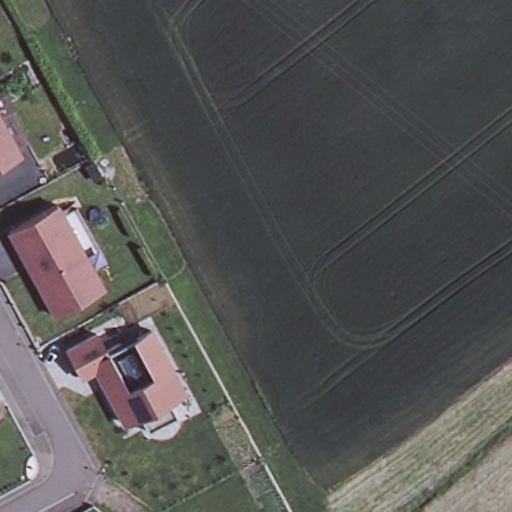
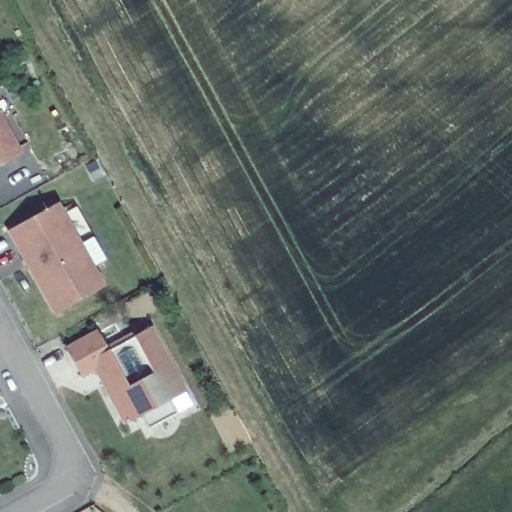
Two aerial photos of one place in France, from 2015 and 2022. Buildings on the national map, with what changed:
unchanged [(22,153),(12,159),(0,165),(0,114),(22,153)]
unchanged [(52,314),(52,313),(7,230),(55,204),(61,215),(74,208),(104,260),(91,268),(102,287),(52,314)]
unchanged [(105,351),(150,328),(182,388),(167,395),(177,416),(147,431),(140,415),(122,424),(95,371),(80,379),(65,347),(95,330),(105,351)]

